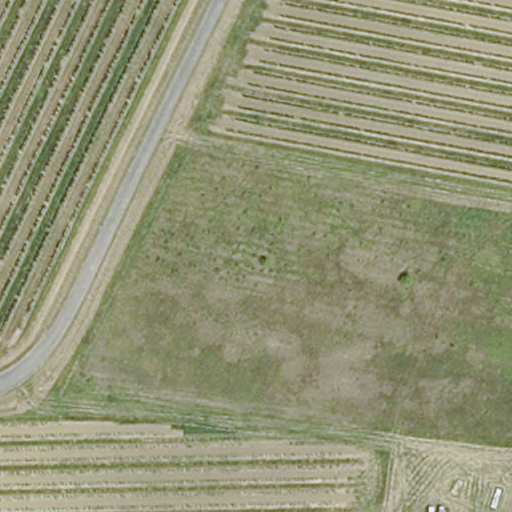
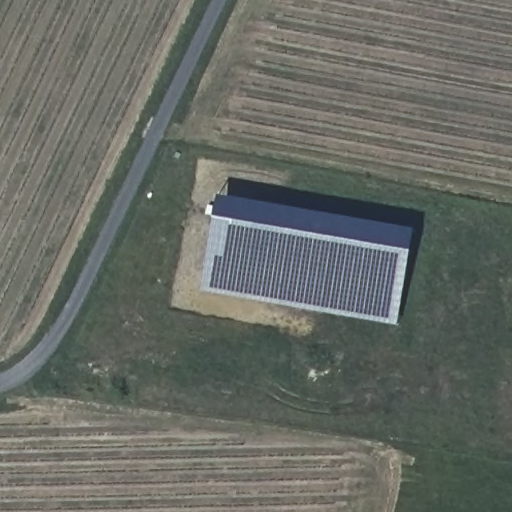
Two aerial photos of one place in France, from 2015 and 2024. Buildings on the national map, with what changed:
new [(201,290),(217,197),(413,232),(397,325),(201,290)]

